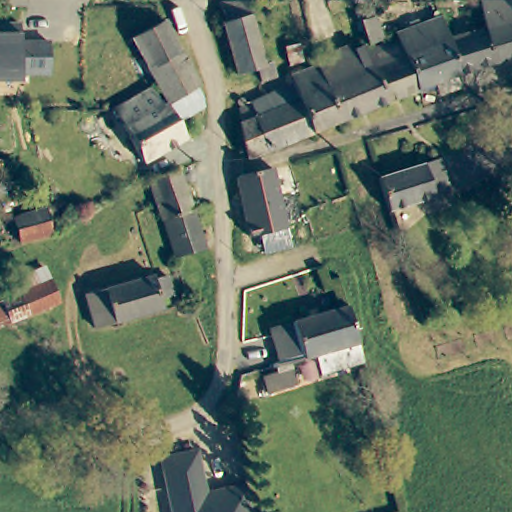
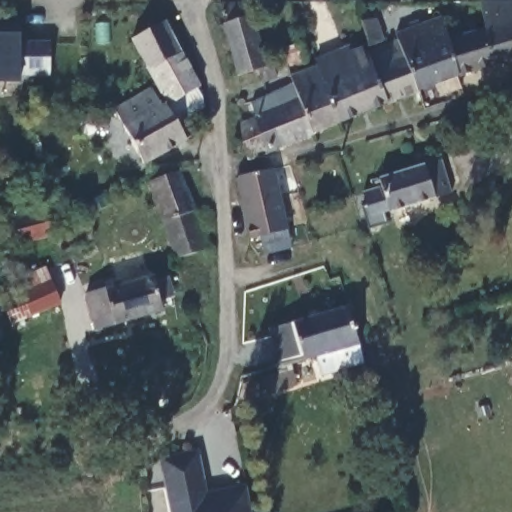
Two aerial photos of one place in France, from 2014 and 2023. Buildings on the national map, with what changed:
unchanged [(512,61),(497,66),(486,27),(478,2),(512,2),(512,61)]
unchanged [(276,73),(268,75),(270,82),(256,88),(252,76),(236,81),(219,4),(249,5),(252,14),(260,12),(263,27),(255,27),(262,55),(272,52),(276,73)]
unchanged [(358,16),(368,12),(370,17),(377,15),(384,40),(367,46),(358,16)]
unchanged [(417,95),(401,41),(398,34),(440,19),(447,42),(459,79),(417,95)]
unchanged [(166,105),(159,92),(154,83),(131,41),(166,22),(197,84),(198,90),(166,105)]
unchanged [(20,23),(21,35),(21,42),(51,41),(51,75),(20,76),(20,82),(0,82),(0,23),(20,23)]
unchanged [(459,79),(447,42),(486,27),(497,66),(459,79)]
unchanged [(316,70),(313,64),(346,51),(348,57),(362,52),(363,56),(368,54),(401,41),(417,95),(337,126),(336,124),(325,95),(316,70)]
unchanged [(300,59),(285,62),(283,52),(297,49),(300,59)]
unchanged [(312,135),(310,129),(297,92),(296,90),(291,77),(316,70),(325,95),(336,124),(312,135)]
unchanged [(144,165),(112,106),(154,83),(159,92),(166,105),(185,140),(144,165)]
unchanged [(249,106),(279,94),(281,98),(297,92),(310,129),(312,135),(266,155),(249,106)]
unchanged [(242,163),(237,111),(249,106),(266,155),(242,163)]
unchanged [(368,179),(427,158),(440,192),(381,215),(368,179)]
unchanged [(273,167),(288,226),(246,236),(235,177),(273,167)]
unchanged [(192,214),(160,225),(146,185),(179,174),(192,214)]
unchanged [(9,222),(19,219),(40,212),(47,236),(17,245),(9,222)]
unchanged [(192,214),(205,255),(175,266),(160,225),(192,214)]
unchanged [(98,330),(85,295),(151,270),(165,306),(98,330)]
unchanged [(45,282),(55,307),(0,328),(0,299),(45,282)]
unchanged [(303,353),(292,319),(348,303),(360,342),(315,355),(305,358),(303,353)]
unchanged [(292,319),(303,353),(305,358),(281,366),(280,362),(270,325),(292,319)]
unchanged [(367,367),(322,381),(315,355),(360,342),(367,367)]
unchanged [(275,370),(293,364),(298,381),(267,393),(263,377),(275,373),(275,370)]
unchanged [(252,512),(172,512),(162,462),(197,455),(206,498),(247,489),(252,512)]

